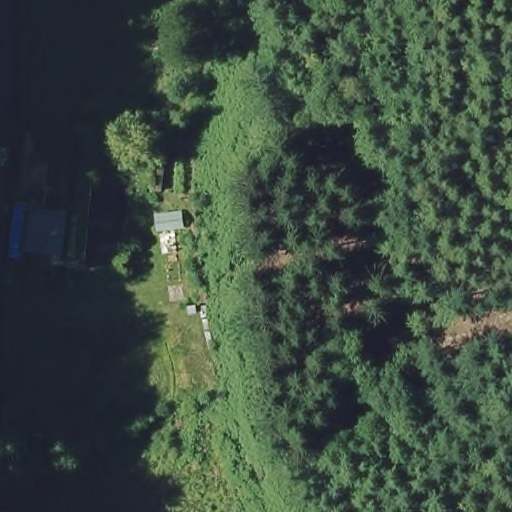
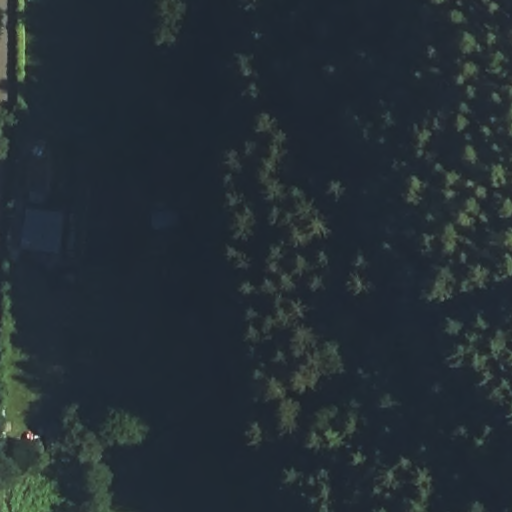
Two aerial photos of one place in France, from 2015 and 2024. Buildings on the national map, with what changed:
unchanged [(26,252),(30,214),(72,218),(68,257),(26,252)]

